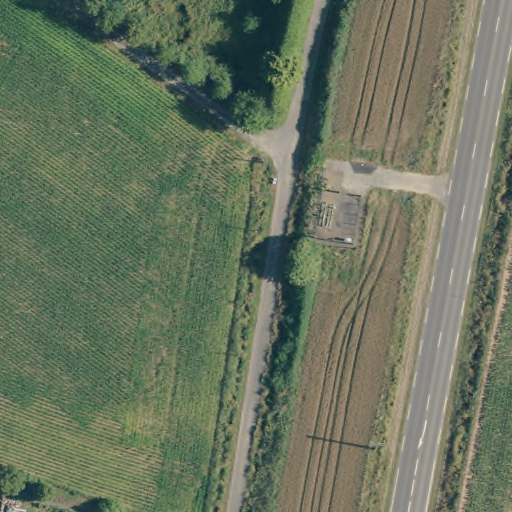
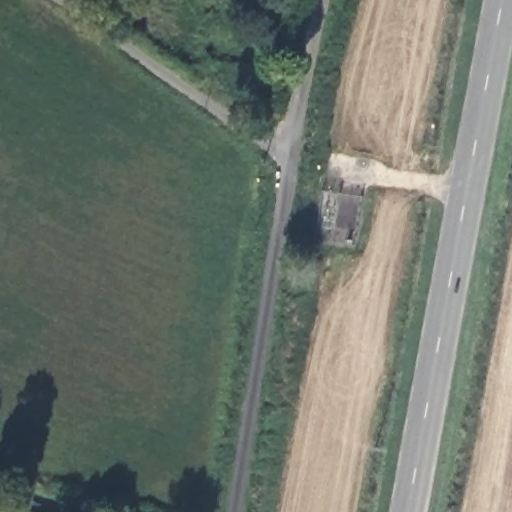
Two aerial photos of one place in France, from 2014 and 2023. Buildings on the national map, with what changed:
unchanged [(48,512),(41,512),(42,511),(48,512)]

